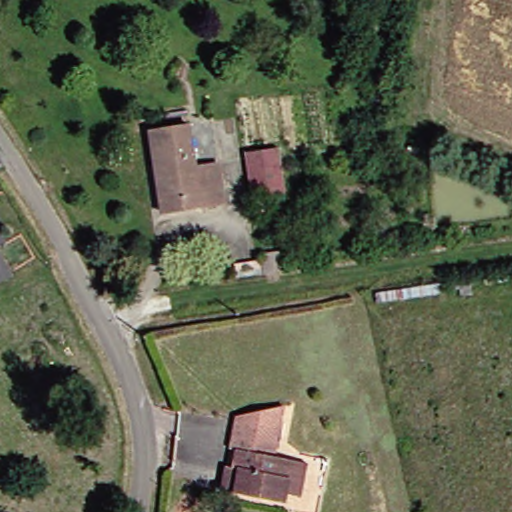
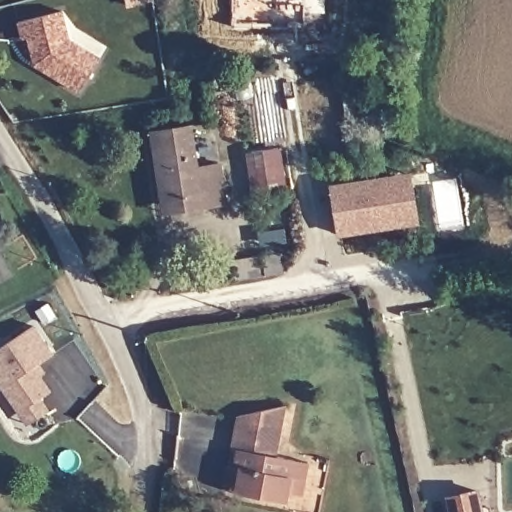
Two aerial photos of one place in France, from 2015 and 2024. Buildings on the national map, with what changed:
new [(27,39),(21,40),(18,24),(61,12),(67,41),(99,60),(79,93),(41,70),(34,62),(27,39)]
unchanged [(160,171),(156,134),(198,130),(201,170),(223,168),(227,210),(205,212),(164,217),(160,171)]
unchanged [(254,202),(252,175),(251,157),(286,156),(287,172),(289,200),(254,202)]
new [(411,174),(418,226),(337,236),(329,187),(411,174)]
new [(24,427),(16,415),(0,389),(0,348),(33,327),(51,357),(37,366),(42,376),(37,378),(47,395),(37,401),(45,413),(24,427)]
unchanged [(228,470),(233,471),(237,452),(230,450),(236,419),(284,409),(274,458),(291,462),(298,463),(294,483),(287,482),(281,507),(233,496),(223,493),(228,470)]
new [(484,512),(449,512),(446,497),(479,490),(484,512)]

